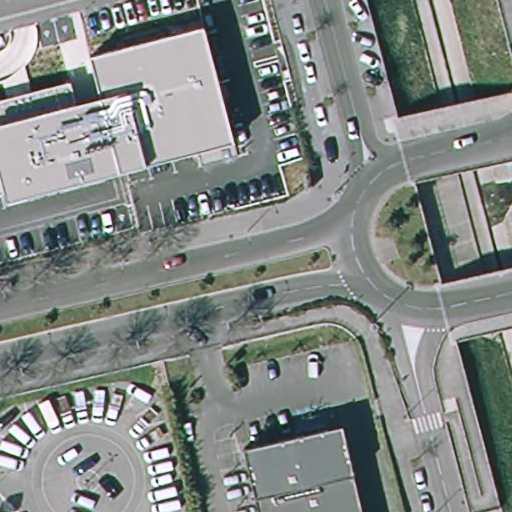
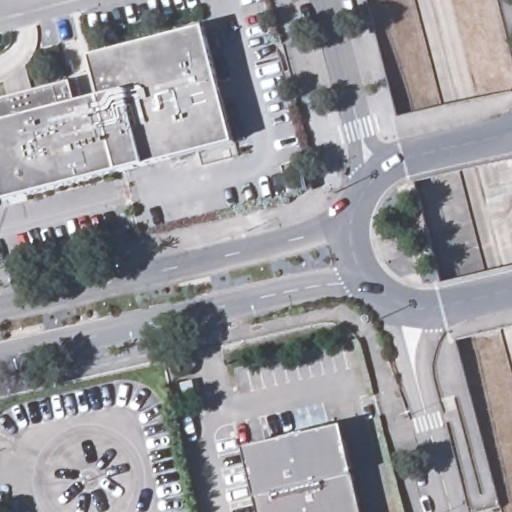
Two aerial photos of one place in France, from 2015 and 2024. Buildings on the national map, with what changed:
unchanged [(233,141),(145,165),(7,200),(3,188),(0,188),(0,101),(70,83),(72,106),(100,98),(90,59),(205,28),(233,141)]
unchanged [(242,450),(245,449),(327,430),(342,427),(345,441),(361,512),(257,512),(242,450)]

